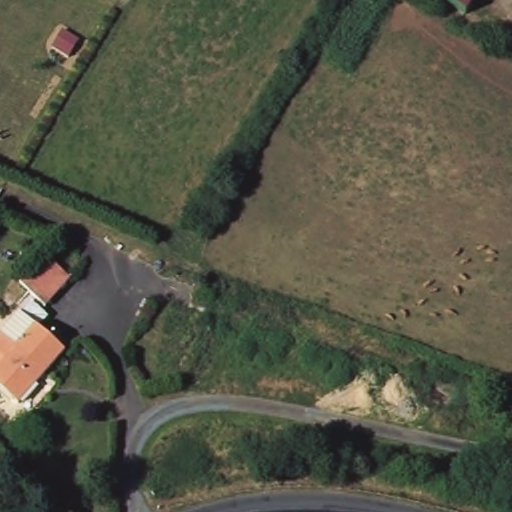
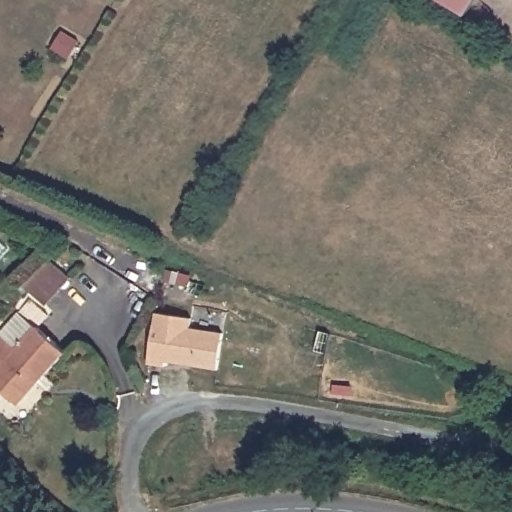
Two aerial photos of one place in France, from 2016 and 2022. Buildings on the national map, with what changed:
unchanged [(464,17),(439,0),(475,0),(464,17)]
unchanged [(70,278),(45,306),(19,283),(45,255),(70,278)]
unchanged [(0,389),(0,333),(30,299),(47,315),(37,327),(65,352),(18,405),(0,389)]
new [(154,312),(192,317),(190,327),(223,332),(217,369),(165,361),(164,366),(147,363),(154,312)]

